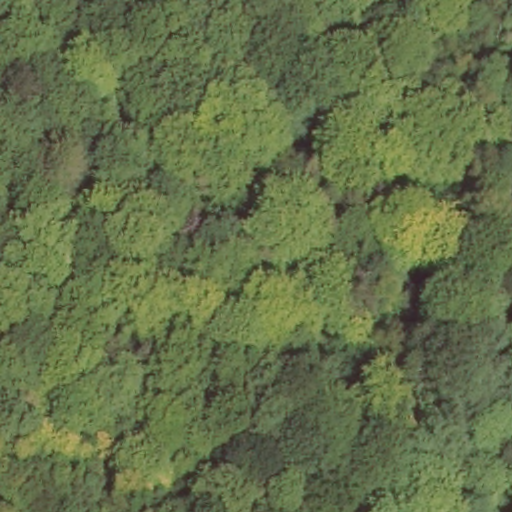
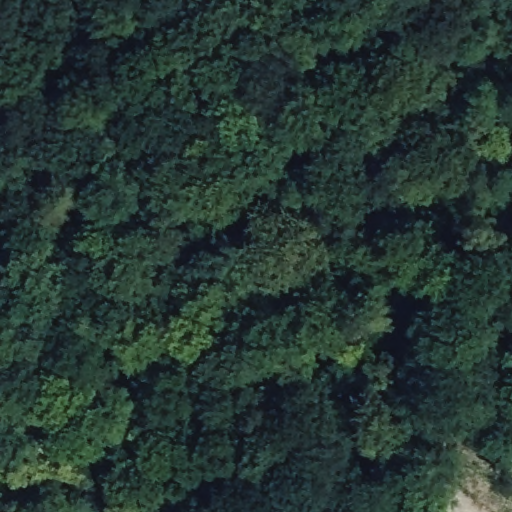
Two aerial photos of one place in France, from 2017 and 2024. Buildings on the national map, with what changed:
unchanged [(385,512),(345,512),(346,501),(386,507),(385,512)]

